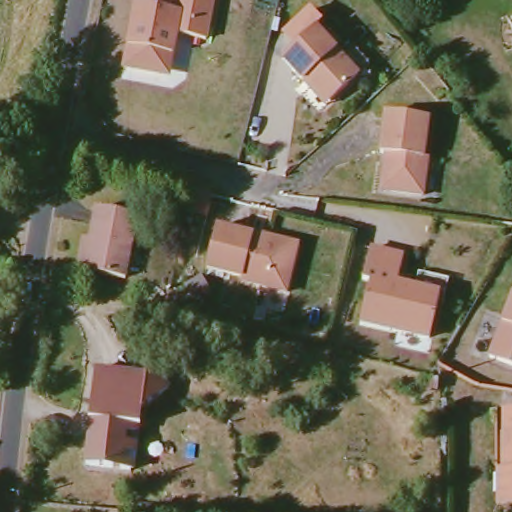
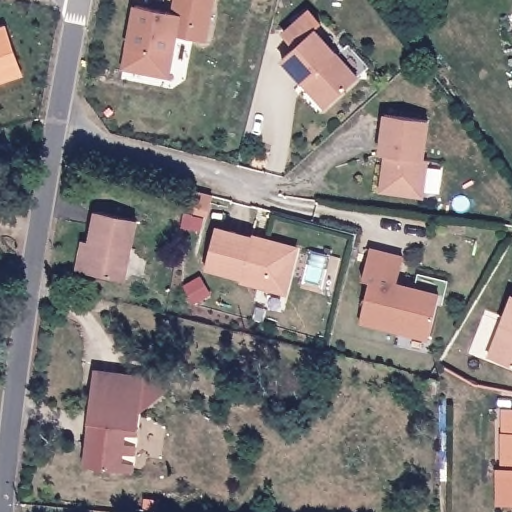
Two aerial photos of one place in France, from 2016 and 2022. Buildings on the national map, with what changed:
unchanged [(177,35),(170,66),(159,74),(125,66),(137,4),(176,11),(178,0),(215,0),(206,41),(177,35)]
new [(16,78),(0,83),(0,26),(5,25),(11,44),(20,71),(16,78)]
unchanged [(302,81),(281,58),(314,29),(357,78),(329,103),(325,106),(302,81)]
unchanged [(386,181),(387,164),(389,156),(382,155),(387,115),(430,121),(426,160),(430,161),(426,197),(395,193),(384,192),(386,181)]
unchanged [(73,237),(84,239),(90,209),(130,217),(117,278),(78,270),(67,268),(73,237)]
unchanged [(253,231),(298,243),(296,251),(287,289),(242,278),(244,274),(207,266),(217,225),(252,233),(253,231)]
unchanged [(402,256),(397,284),(440,294),(430,338),(360,321),(369,281),(362,279),(369,248),(402,256)]
unchanged [(491,353),(512,296),(512,361),(491,353)]
unchanged [(127,372),(146,375),(156,368),(171,389),(142,408),(140,427),(135,426),(130,469),(86,464),(88,440),(92,402),(97,369),(127,372)]
unchanged [(507,495),(508,471),(497,470),(499,433),(500,407),(512,408),(512,495),(507,495)]

